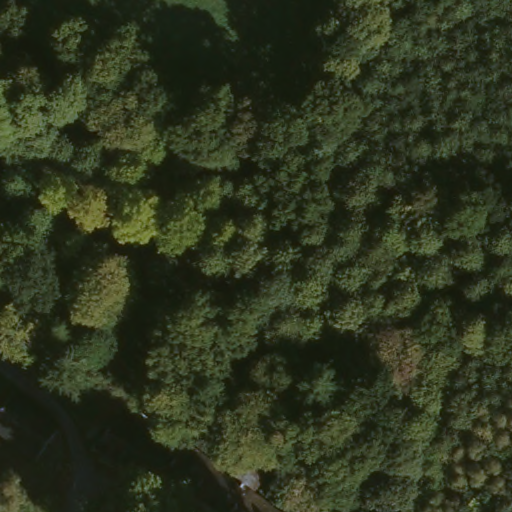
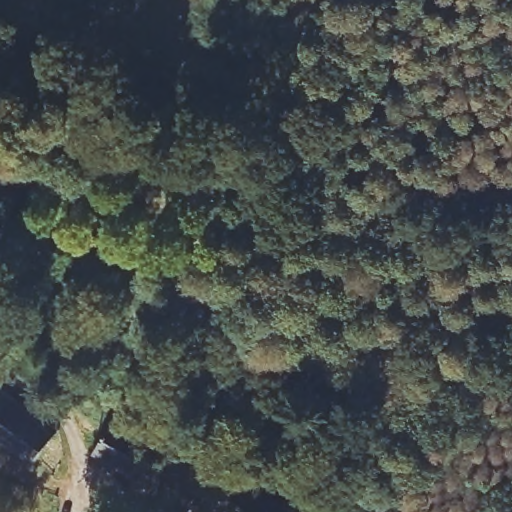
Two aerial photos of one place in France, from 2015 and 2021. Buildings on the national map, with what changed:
unchanged [(46,426),(22,457),(0,441),(0,419),(16,402),(46,426)]
unchanged [(252,512),(194,512),(150,478),(140,494),(138,499),(83,463),(105,429),(158,464),(166,448),(252,512)]

